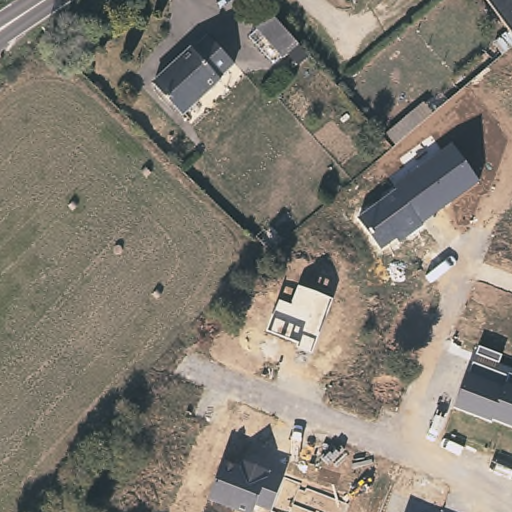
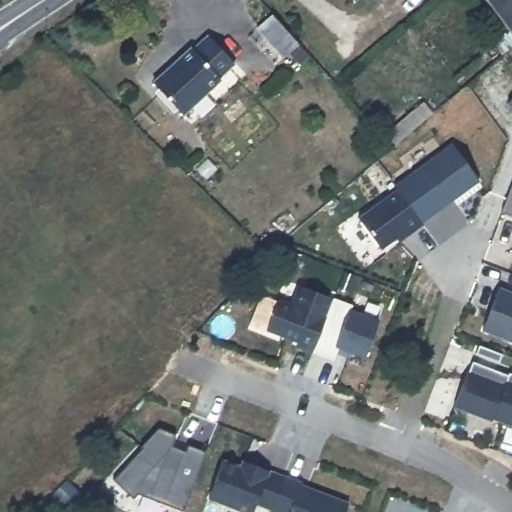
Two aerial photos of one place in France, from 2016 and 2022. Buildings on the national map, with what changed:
unchanged [(486,0),(512,0),(512,34),(486,0)]
unchanged [(299,44),(285,57),(257,27),(272,14),(299,44)]
unchanged [(235,64),(222,78),(223,80),(185,116),(154,85),(189,49),(197,46),(207,36),(235,64)]
unchanged [(511,102),(512,101),(512,103),(511,102)]
unchanged [(432,113),(391,147),(383,139),(423,104),(432,113)]
unchanged [(397,190),(394,185),(451,145),(477,182),(423,224),(398,243),(396,240),(382,249),(361,217),(397,190)]
new [(512,179),(512,215),(500,210),(512,179)]
unchanged [(292,305),(300,286),(353,305),(352,310),(378,321),(363,357),(340,348),(336,361),(297,348),(298,343),(268,332),(278,300),(292,305)]
unchanged [(512,293),(512,341),(485,331),(501,289),(512,293)]
unchanged [(492,418),(491,421),(455,407),(468,373),(472,364),(510,379),(511,374),(512,375),(512,425),(492,418)]
new [(141,443),(140,441),(156,422),(172,428),(174,430),(176,433),(176,436),(173,442),(186,447),(189,440),(206,447),(182,506),(138,489),(134,494),(112,475),(141,443)]
unchanged [(348,503),(345,512),(275,512),(256,505),(253,512),(246,512),(212,498),(225,460),(241,466),(243,460),(272,470),(303,481),(302,485),(348,503)]

